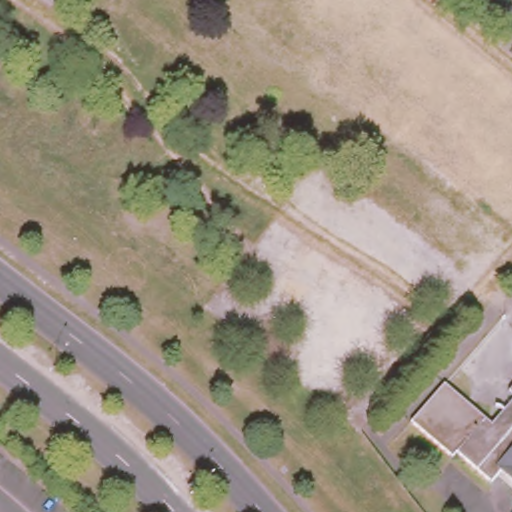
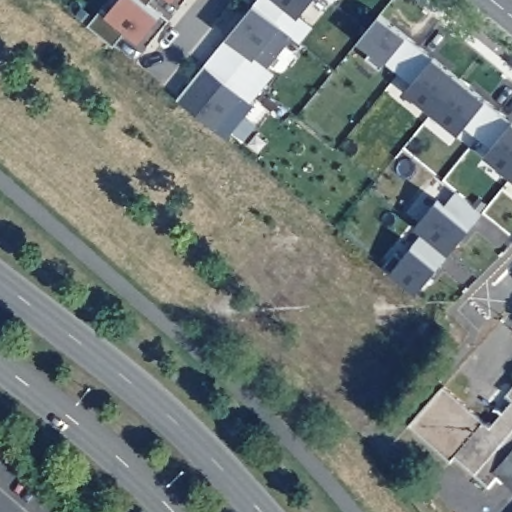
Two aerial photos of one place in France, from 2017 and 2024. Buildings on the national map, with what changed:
new [(160,12),(138,39),(125,27),(112,43),(87,23),(100,7),(106,11),(115,0),(147,0),(146,1),(160,12)]
new [(243,12),(252,1),(273,17),(253,1),(253,0),(308,0),(297,13),(310,24),(298,39),(278,23),(270,33),(253,55),(273,70),(261,85),(248,100),(239,92),(213,125),(176,95),(203,62),(214,48),(226,34),(243,12)]
demolished [(512,230),(230,0),(306,0),(512,168),(512,230)]
new [(376,12),(417,44),(396,70),(383,59),(376,67),(363,56),(369,47),(356,37),(364,27),(376,12)]
new [(481,152),(488,145),(474,134),(462,123),(455,130),(429,110),(403,88),(409,80),(396,70),(404,60),(417,44),(457,76),(496,108),(495,108),(512,122),(512,168),(508,173),(481,152)]
new [(512,168),(512,176),(508,173),(512,168)]
new [(434,196),(442,202),(453,189),(478,210),(446,249),(413,222),(434,196)]
new [(392,247),(399,254),(420,229),(446,249),(414,288),(381,262),(392,247)]
unchanged [(494,487),(460,457),(454,463),(413,425),(446,387),(494,429),(512,410),(512,477),(507,473),(494,487)]
unchanged [(512,393),(512,396),(511,395),(512,393)]

